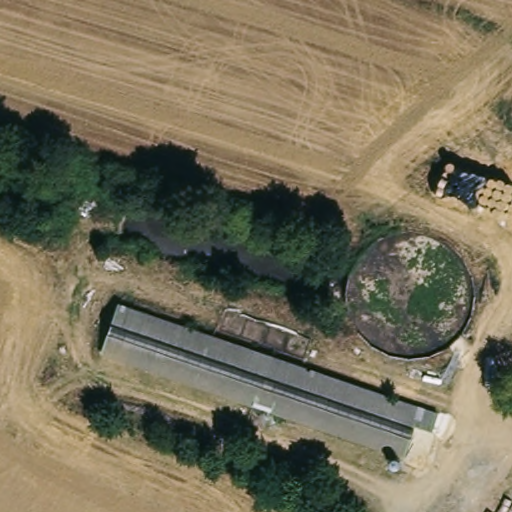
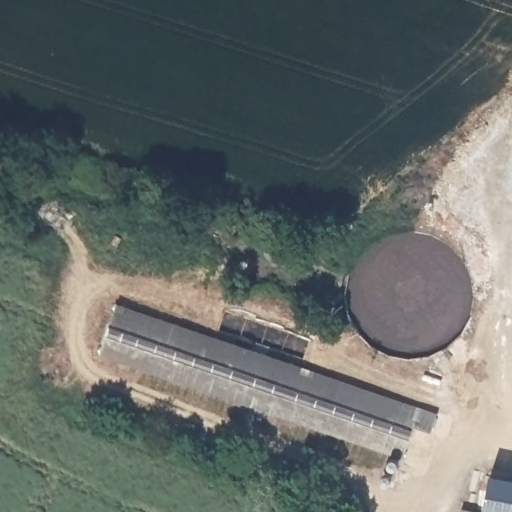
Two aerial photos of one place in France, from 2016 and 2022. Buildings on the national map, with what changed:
unchanged [(415,408),(398,456),(101,351),(121,302),(415,408)]
new [(512,476),(512,512),(486,512),(493,472),(512,476)]

